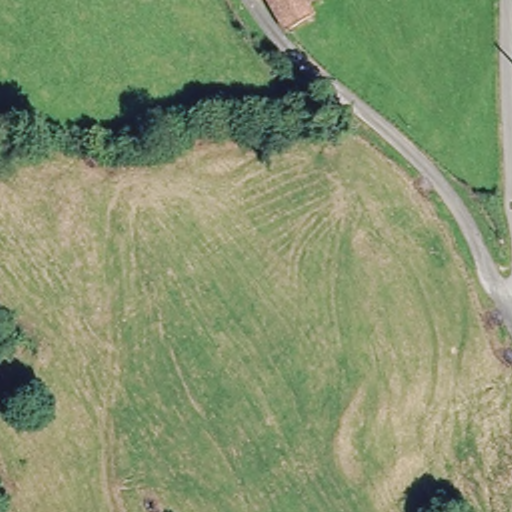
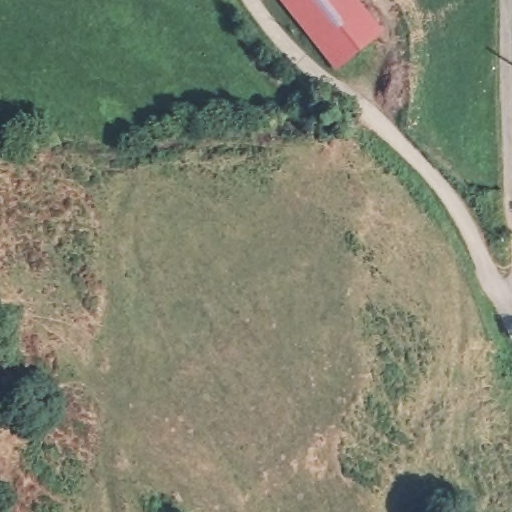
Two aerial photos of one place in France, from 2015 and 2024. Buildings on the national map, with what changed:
demolished [(273,0),(308,0),(316,15),(304,22),(289,29),(273,0)]
new [(339,72),(281,0),(360,0),(386,33),(339,72)]

